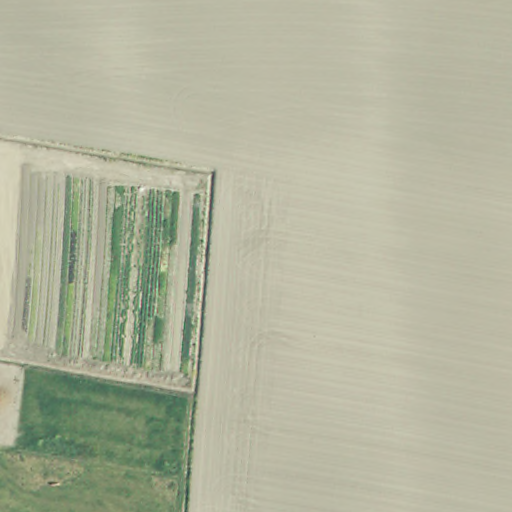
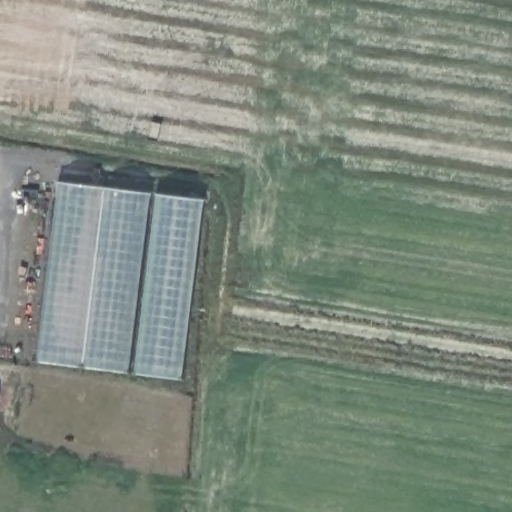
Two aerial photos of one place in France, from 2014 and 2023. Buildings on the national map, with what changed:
new [(60,181),(153,194),(130,373),(38,362),(60,181)]

